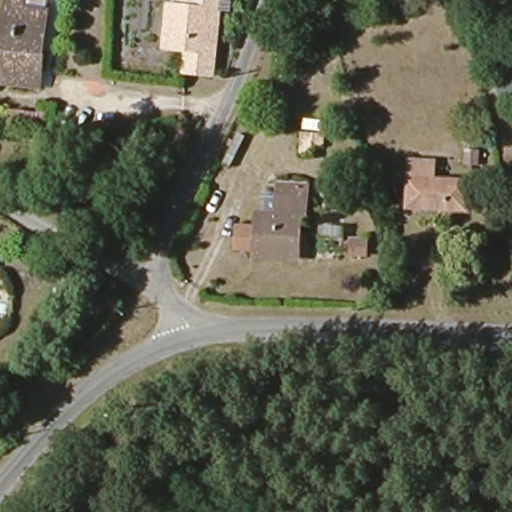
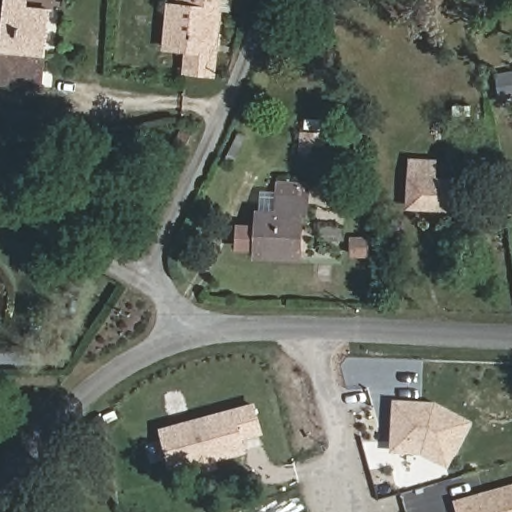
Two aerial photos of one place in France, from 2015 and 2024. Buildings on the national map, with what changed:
unchanged [(52,12),(45,89),(10,87),(10,77),(0,77),(0,72),(4,42),(8,0),(30,0),(30,10),(52,12)]
unchanged [(167,51),(169,7),(179,7),(179,0),(221,0),(215,76),(188,74),(187,53),(167,51)]
unchanged [(0,72),(0,42),(4,42),(0,72)]
new [(512,97),(498,100),(494,74),(512,71),(512,97)]
unchanged [(10,77),(10,87),(0,86),(0,77),(10,77)]
unchanged [(403,187),(405,168),(427,170),(426,188),(461,190),(460,216),(415,214),(402,213),(403,187)]
unchanged [(272,254),(252,251),(252,246),(234,243),(236,226),(257,228),(260,207),(276,209),(278,194),(280,181),(310,186),(310,198),(308,215),(300,214),(297,245),(295,257),(272,254)]
new [(243,441),(246,453),(216,461),(217,467),(172,479),(159,428),(254,402),(263,435),(243,441)]
new [(395,407),(435,409),(468,427),(450,458),(446,467),(421,454),(393,453),(394,443),(395,407)]
new [(512,490),(512,512),(460,512),(458,506),(476,500),(485,498),(512,490)]

